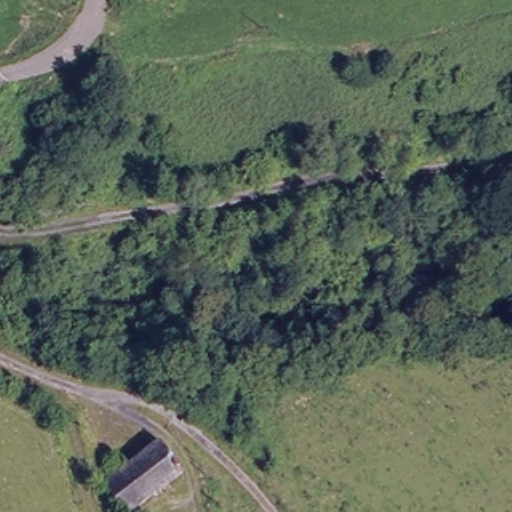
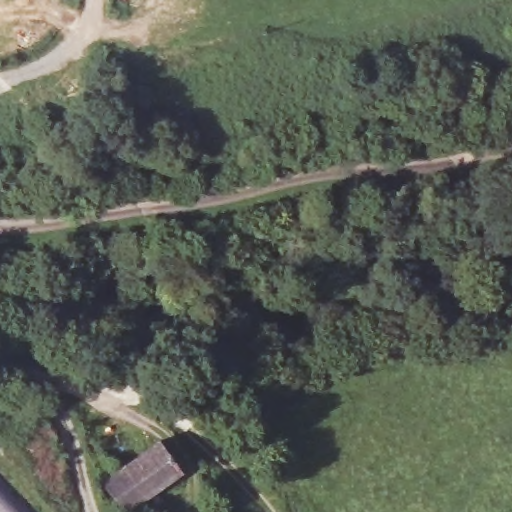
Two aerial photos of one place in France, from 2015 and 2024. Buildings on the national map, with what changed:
unchanged [(143,450),(156,440),(179,470),(133,505),(137,512),(128,512),(102,481),(143,450)]
new [(25,512),(0,512),(0,486),(25,512)]

